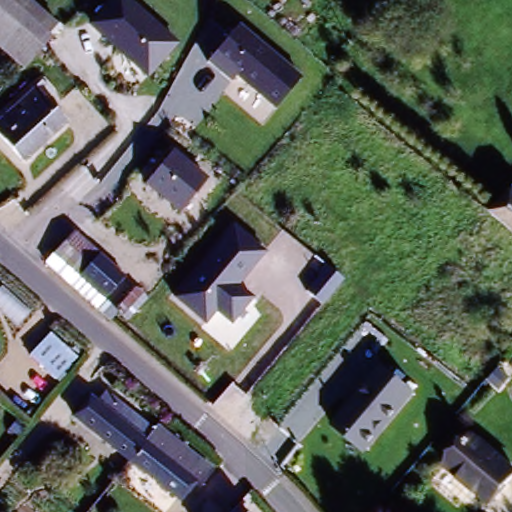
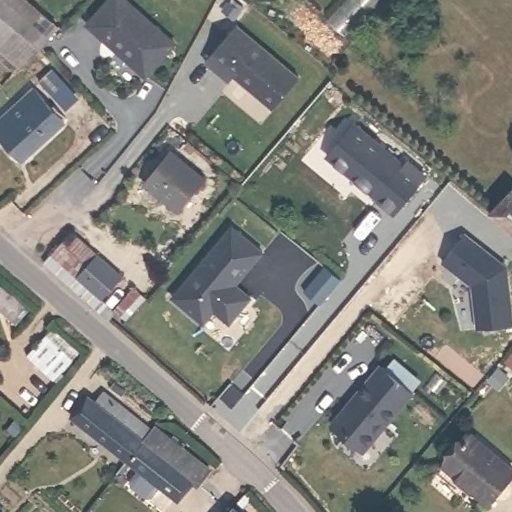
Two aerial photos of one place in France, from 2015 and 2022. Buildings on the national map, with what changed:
unchanged [(0,0),(21,0),(56,35),(18,76),(15,72),(9,79),(0,70),(0,0)]
unchanged [(176,44),(147,78),(84,24),(106,0),(126,0),(176,44)]
unchanged [(302,77),(272,111),(234,79),(230,83),(207,62),(240,25),(302,77)]
unchanged [(27,160),(0,132),(0,122),(32,92),(64,125),(27,160)]
new [(356,120),(405,162),(408,159),(428,175),(395,215),(327,156),(356,120)]
unchanged [(206,180),(176,215),(142,185),(172,146),(206,180)]
unchanged [(511,239),(482,214),(491,203),(501,192),(510,204),(507,206),(512,212),(512,239),(511,239)]
unchanged [(233,227),(264,253),(235,286),(251,298),(231,325),(214,315),(206,326),(173,295),(233,227)]
new [(460,230),(501,261),(509,318),(474,323),(468,280),(438,257),(460,230)]
unchanged [(66,232),(148,295),(125,325),(40,261),(66,232)]
unchanged [(380,362),(414,392),(365,451),(329,421),(380,362)]
unchanged [(96,392),(142,430),(154,420),(212,470),(178,506),(64,420),(96,392)]
unchanged [(512,465),(512,477),(488,512),(484,512),(437,473),(464,431),(512,465)]
unchanged [(223,512),(228,506),(236,512),(223,512)]

